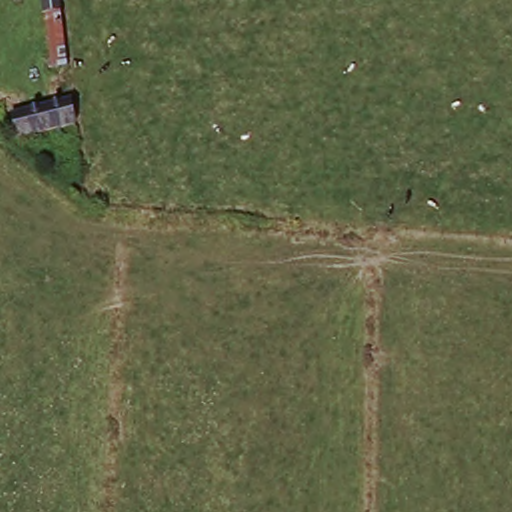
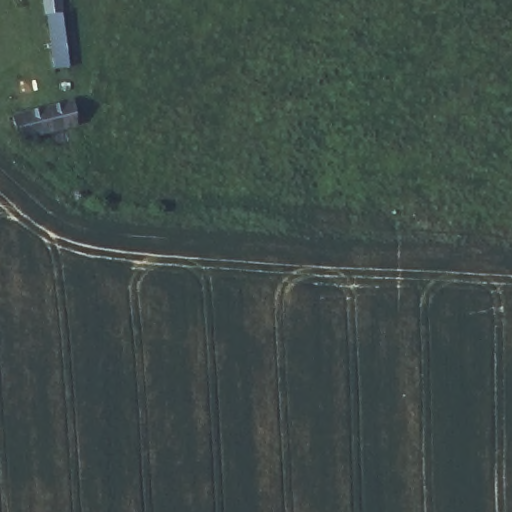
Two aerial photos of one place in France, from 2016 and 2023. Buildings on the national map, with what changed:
unchanged [(69,55),(53,58),(44,0),(61,0),(69,55)]
unchanged [(78,124),(19,137),(13,113),(75,101),(78,124)]

